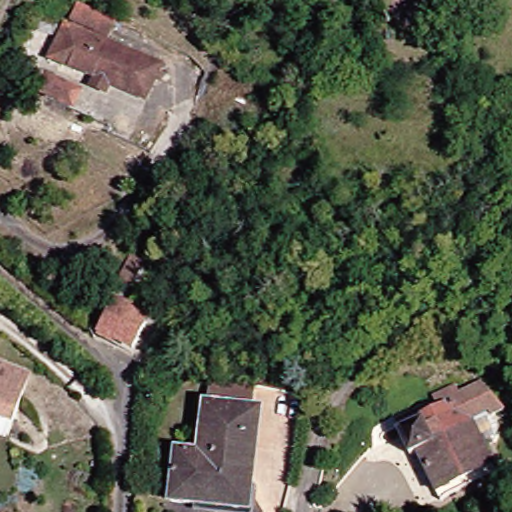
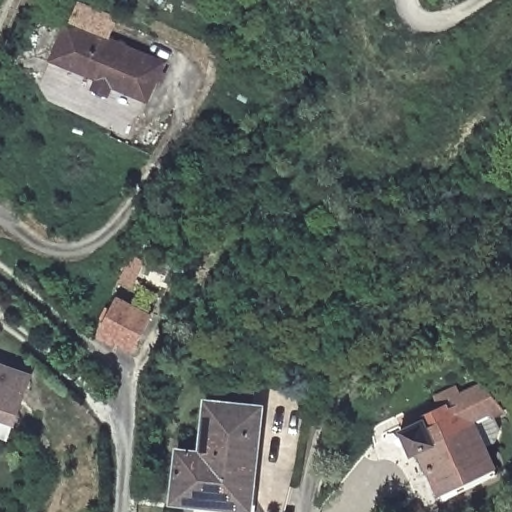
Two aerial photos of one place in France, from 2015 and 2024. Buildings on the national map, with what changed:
unchanged [(80,3),(114,17),(106,36),(164,60),(148,97),(112,82),(108,91),(95,84),(98,75),(52,55),(68,19),(73,20),(80,3)]
unchanged [(79,104),(77,107),(40,89),(49,72),(85,89),(79,104)]
unchanged [(106,332),(122,298),(153,314),(136,347),(106,332)]
unchanged [(231,361),(209,355),(213,338),(235,344),(231,361)]
unchanged [(29,375),(12,422),(0,418),(0,365),(29,375)]
unchanged [(496,467),(441,494),(421,453),(415,456),(405,432),(424,423),(423,422),(445,412),(440,402),(461,393),(496,467)]
unchanged [(485,398),(496,395),(509,412),(493,418),(485,398)]
unchanged [(207,504),(186,501),(191,461),(214,464),(220,412),(265,417),(256,500),(255,510),(207,504)]

